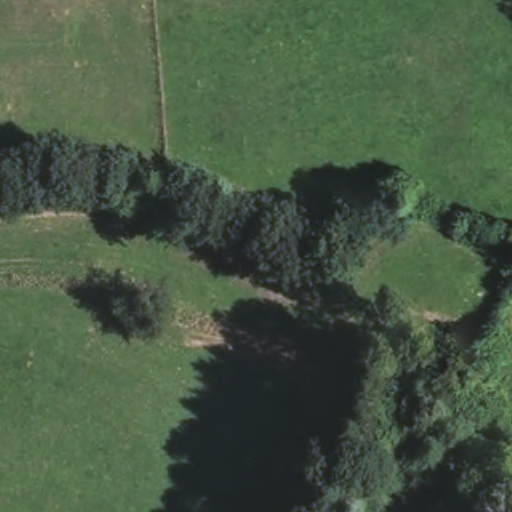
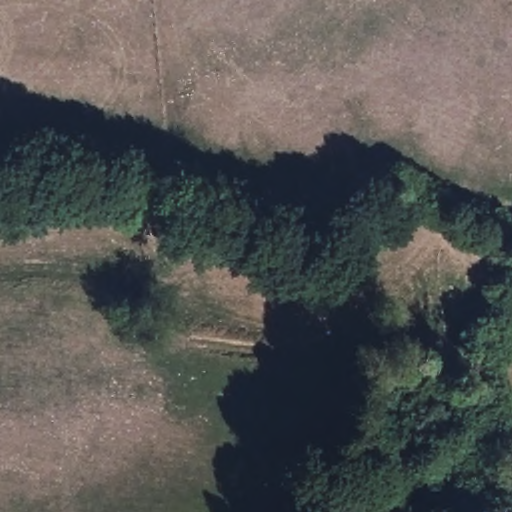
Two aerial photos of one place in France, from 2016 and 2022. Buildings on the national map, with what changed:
[]

